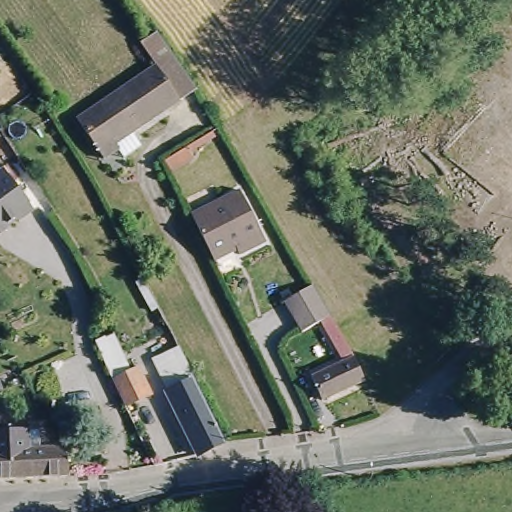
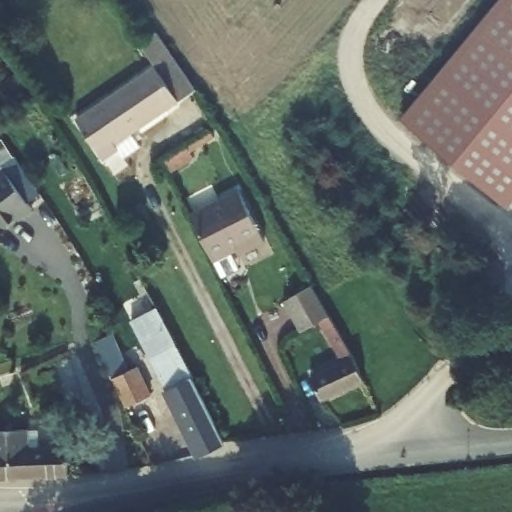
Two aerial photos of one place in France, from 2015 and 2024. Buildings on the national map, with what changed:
new [(509,206),(402,116),(499,0),(512,0),(512,203),(509,206)]
unchanged [(200,86),(131,131),(140,145),(122,157),(117,150),(100,161),(70,119),(152,65),(139,44),(163,29),(200,86)]
unchanged [(11,222),(10,220),(0,226),(0,172),(25,214),(11,222)]
unchanged [(234,189),(262,239),(235,253),(233,249),(211,260),(187,214),(234,189)]
unchanged [(329,402),(316,377),(347,360),(325,321),(303,334),(285,303),(315,287),(322,300),(370,381),(329,402)]
unchanged [(112,333),(129,367),(137,365),(153,395),(122,409),(94,340),(112,333)]
unchanged [(193,385),(190,385),(224,452),(200,464),(150,368),(170,359),(166,350),(172,347),(177,356),(193,385)]
unchanged [(31,452),(70,450),(72,475),(0,477),(0,434),(30,433),(31,452)]

